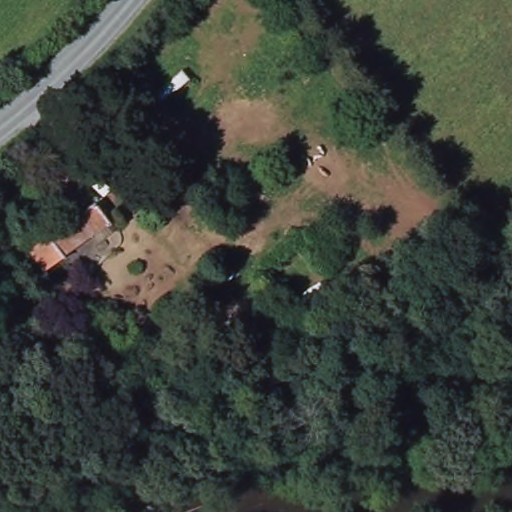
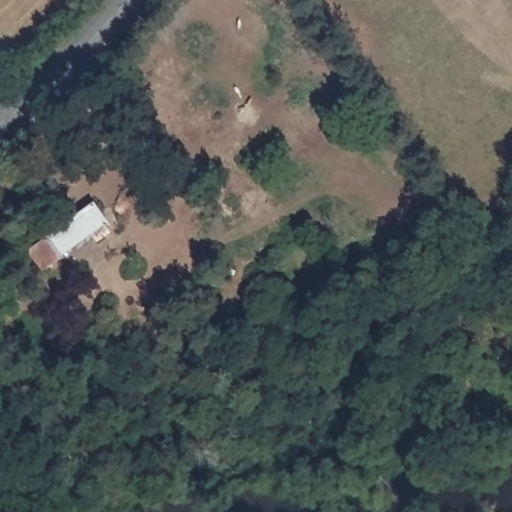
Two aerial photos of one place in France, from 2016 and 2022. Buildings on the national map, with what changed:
unchanged [(180,66),(189,83),(156,110),(146,96),(180,66)]
unchanged [(94,202),(101,211),(108,221),(62,255),(63,256),(62,257),(44,270),(29,248),(94,202)]
unchanged [(495,245),(472,257),(462,238),(485,226),(495,245)]

